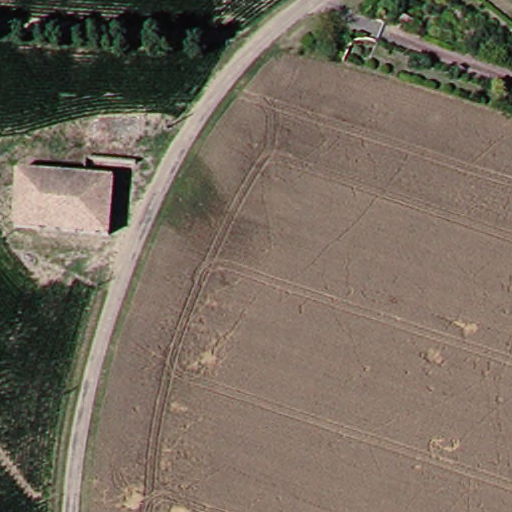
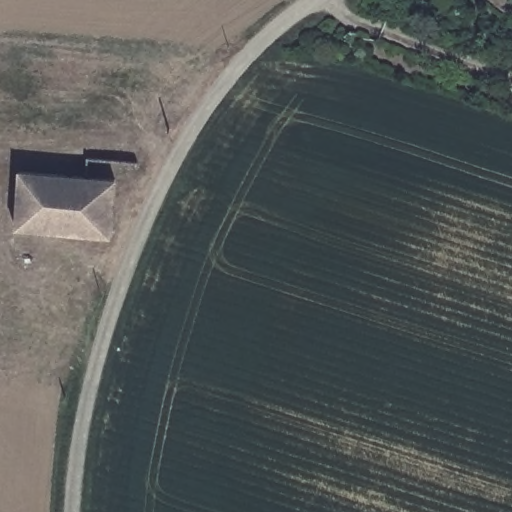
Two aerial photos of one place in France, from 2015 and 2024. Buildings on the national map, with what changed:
unchanged [(12,230),(17,173),(109,182),(104,238),(12,230)]

